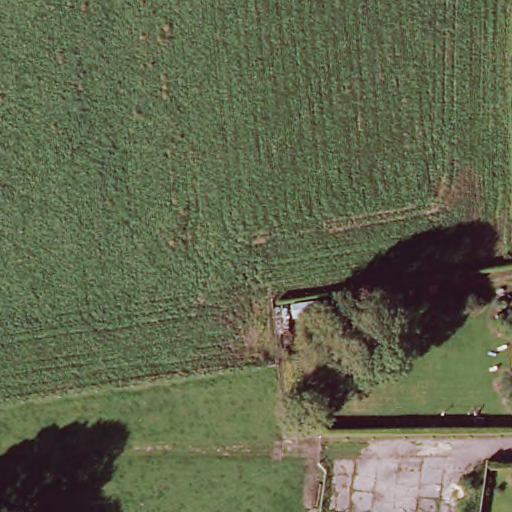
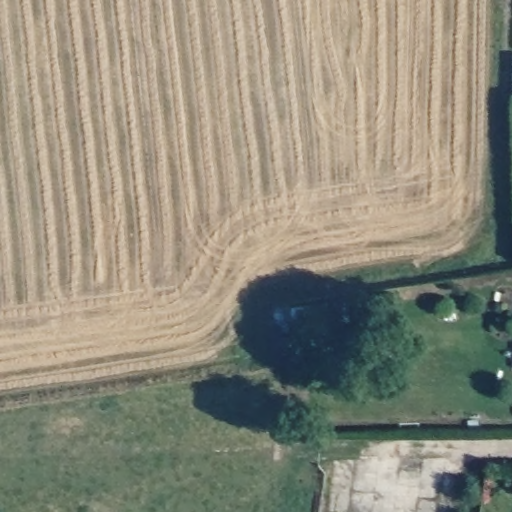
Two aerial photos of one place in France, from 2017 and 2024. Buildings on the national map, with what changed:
unchanged [(512,57),(512,90),(511,90),(512,56),(512,57)]

